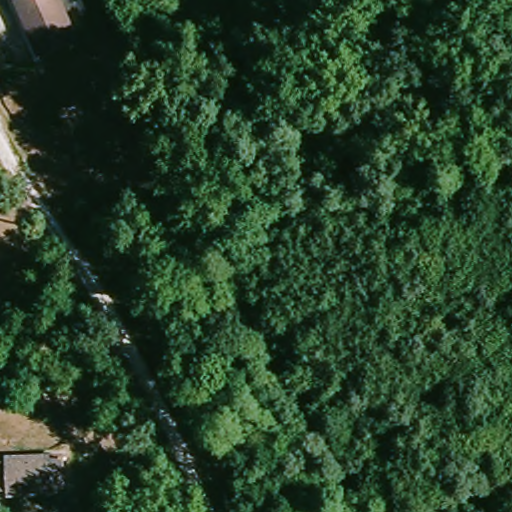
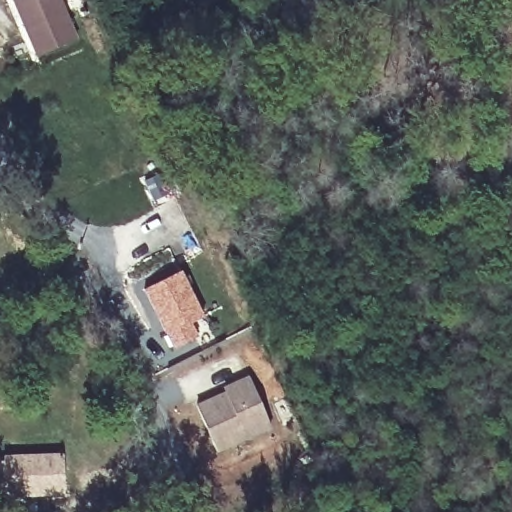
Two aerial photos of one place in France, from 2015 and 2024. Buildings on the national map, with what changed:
unchanged [(64,46),(42,56),(29,30),(14,0),(60,0),(80,39),(64,46)]
new [(146,286),(183,269),(205,315),(192,321),(199,335),(175,347),(160,315),(157,309),(146,286)]
new [(224,386),(232,383),(249,375),(270,427),(217,449),(197,403),(226,391),(224,386)]
unchanged [(9,470),(9,465),(68,463),(70,502),(10,504),(10,498),(0,498),(0,470),(9,470)]

